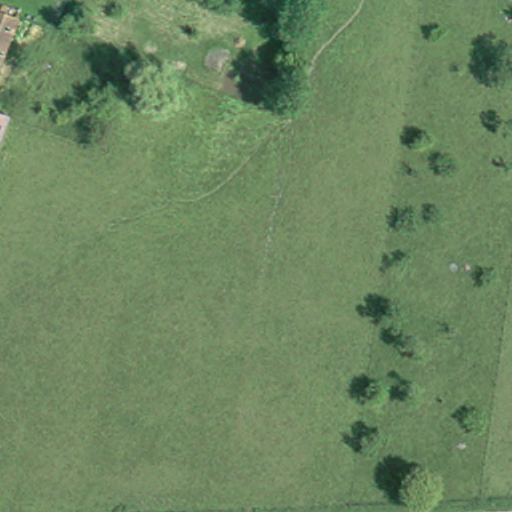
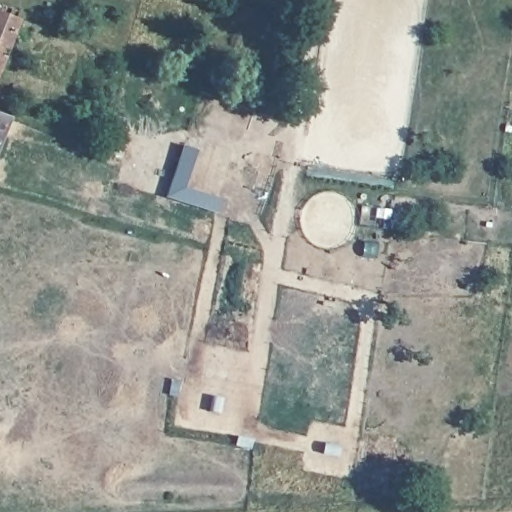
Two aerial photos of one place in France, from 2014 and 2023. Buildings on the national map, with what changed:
unchanged [(20,26),(17,32),(25,36),(22,45),(12,40),(0,68),(0,20),(15,25),(20,26)]
unchanged [(0,147),(0,121),(10,124),(0,147)]
new [(200,150),(187,189),(226,200),(221,215),(167,198),(184,146),(200,150)]

